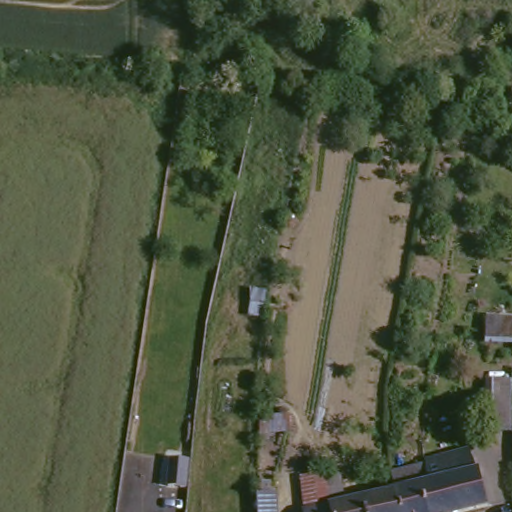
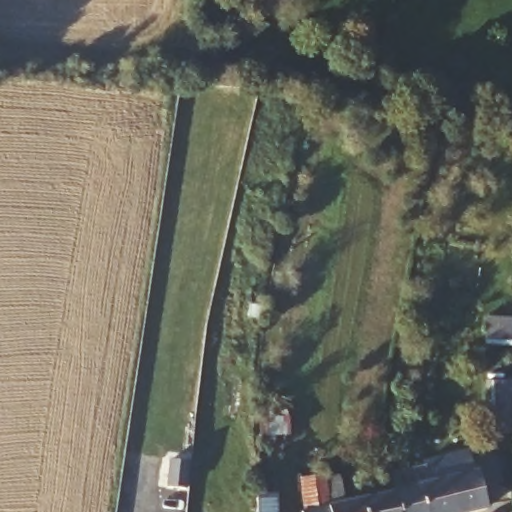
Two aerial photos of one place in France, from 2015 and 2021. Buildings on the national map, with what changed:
unchanged [(482,322),(512,326),(512,329),(511,334),(509,349),(479,346),(482,322)]
unchanged [(485,436),(489,383),(512,386),(512,403),(511,411),(509,438),(485,436)]
unchanged [(392,491),(390,484),(386,471),(423,462),(470,453),(483,508),(467,512),(362,512),(360,500),(392,494),(392,491)]
unchanged [(186,459),(184,488),(164,487),(166,458),(186,459)]
unchanged [(320,478),(324,507),(360,500),(362,512),(303,512),(301,482),(320,478)]
unchanged [(275,512),(257,512),(257,497),(275,496),(275,512)]

